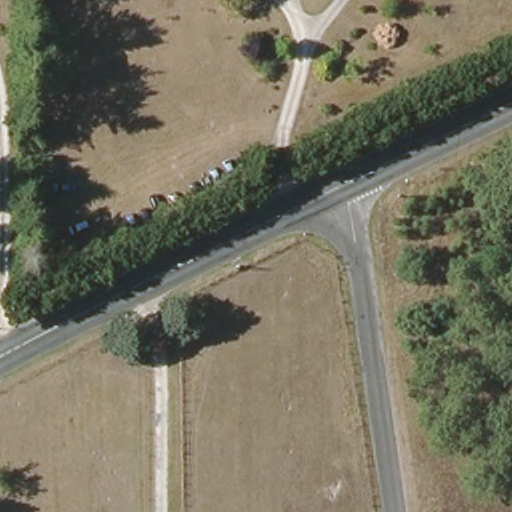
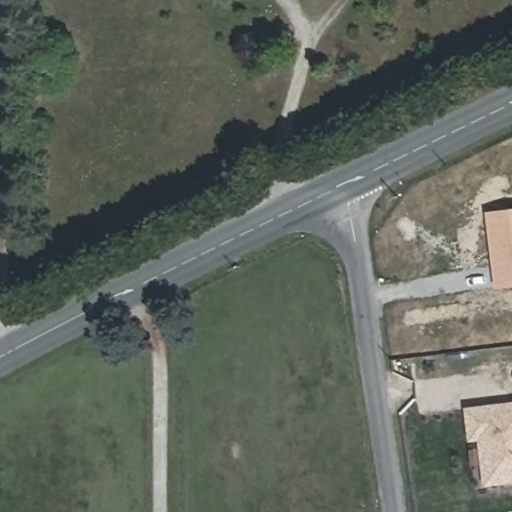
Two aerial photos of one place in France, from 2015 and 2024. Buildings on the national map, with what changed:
new [(488,212),(512,210),(512,288),(497,290),(488,212)]
new [(481,437),(471,438),(467,408),(512,402),(512,484),(487,487),(481,437)]

